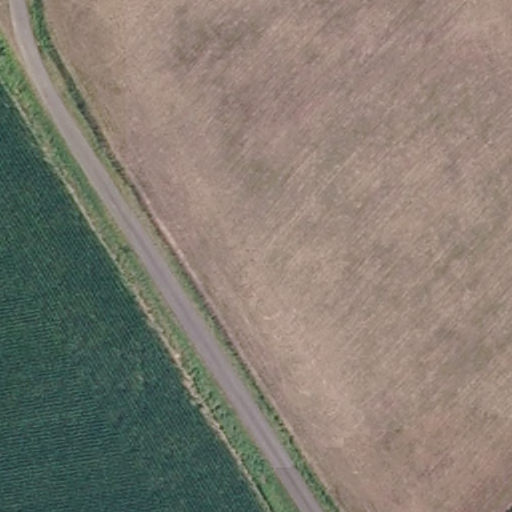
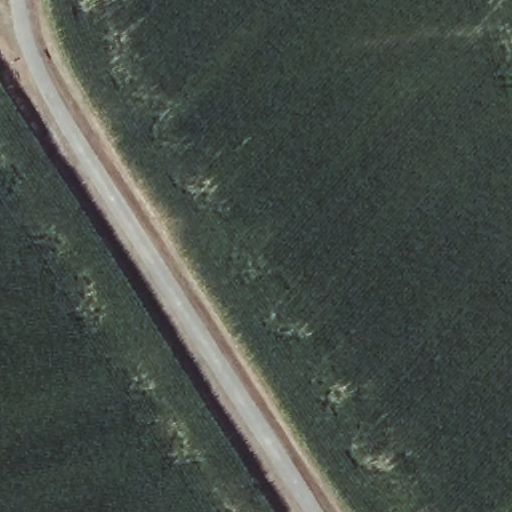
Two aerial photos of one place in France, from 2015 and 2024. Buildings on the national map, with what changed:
[]

